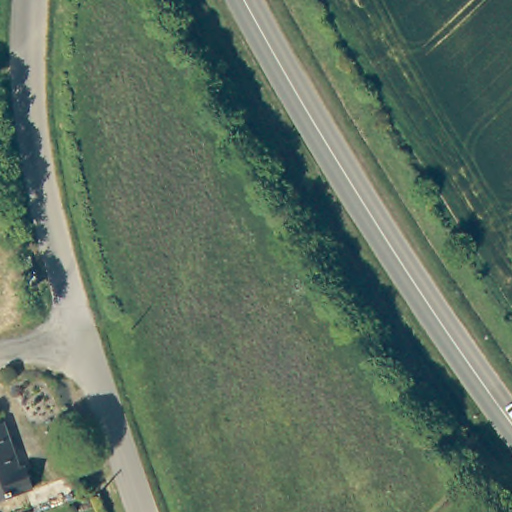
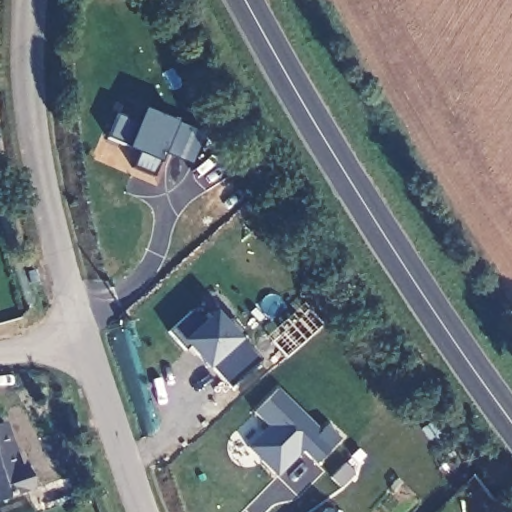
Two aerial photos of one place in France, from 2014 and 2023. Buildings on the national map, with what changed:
new [(114,113),(134,122),(140,108),(201,134),(189,163),(161,151),(151,177),(128,167),(135,151),(104,138),(114,113)]
new [(230,387),(210,366),(208,367),(188,347),(184,350),(168,333),(192,310),(204,322),(215,311),(227,325),(232,319),(244,334),(241,337),(261,360),(230,387)]
new [(249,449),(270,426),(256,413),(278,390),(320,431),(326,426),(340,440),(316,464),(302,451),(277,475),(249,449)]
unchanged [(6,424),(20,466),(27,469),(33,490),(0,499),(0,426),(6,424)]

